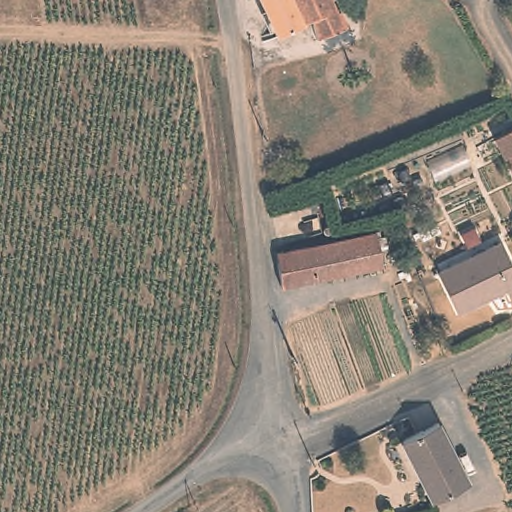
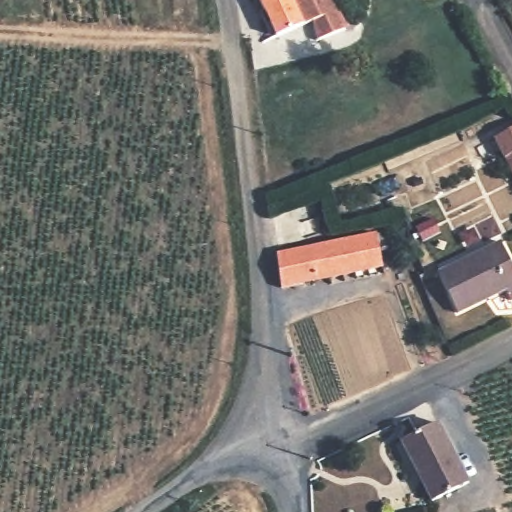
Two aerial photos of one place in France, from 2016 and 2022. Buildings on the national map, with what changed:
unchanged [(317,40),(312,20),(276,36),(260,0),(331,0),(345,28),(317,40)]
unchanged [(494,141),(512,130),(512,175),(502,158),(494,141)]
unchanged [(440,232),(422,241),(415,227),(434,219),(440,232)]
unchanged [(383,266),(281,287),(277,253),(377,233),(383,266)]
unchanged [(512,265),(512,300),(511,301),(505,289),(457,313),(442,282),(437,272),(466,258),(500,242),(512,265)]
unchanged [(468,482),(431,501),(401,441),(438,423),(468,482)]

